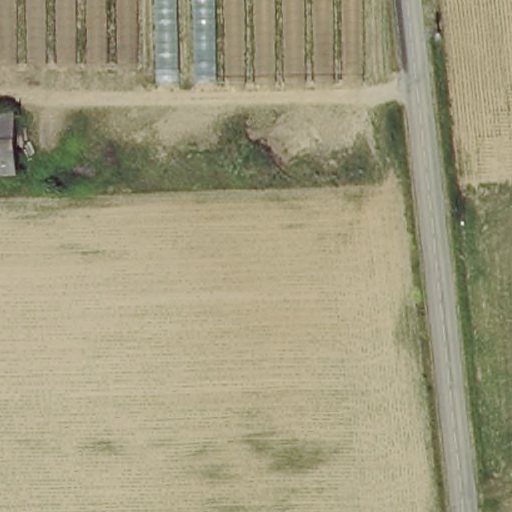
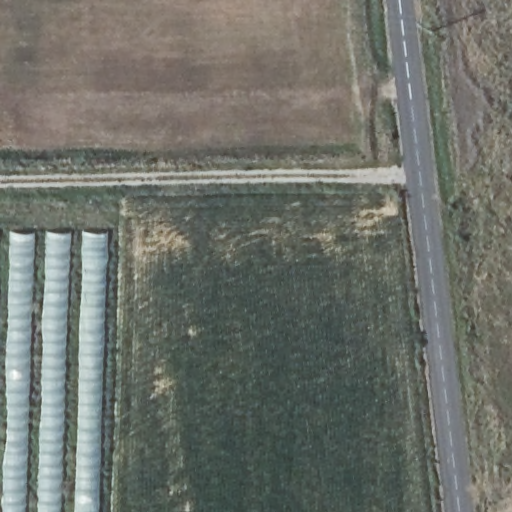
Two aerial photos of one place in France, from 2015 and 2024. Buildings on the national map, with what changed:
demolished [(9,177),(0,177),(0,117),(10,117),(9,177)]
new [(101,512),(0,512),(0,231),(113,233),(101,512)]

